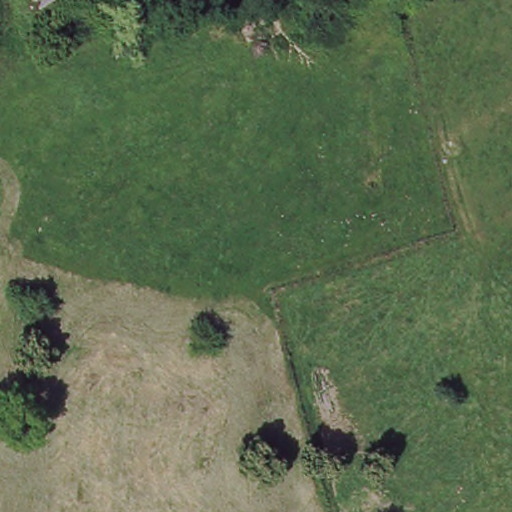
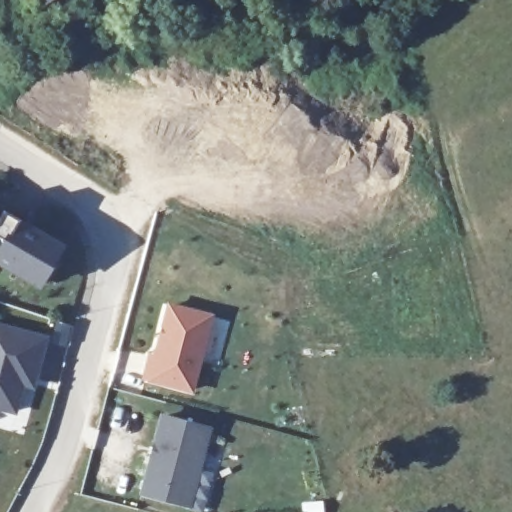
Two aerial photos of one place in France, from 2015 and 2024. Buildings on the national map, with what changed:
unchanged [(37,10),(31,0),(52,0),(37,10)]
new [(13,230),(56,255),(34,292),(0,272),(0,219),(15,228),(13,230)]
new [(214,313),(194,393),(141,379),(147,353),(152,354),(167,302),(214,313)]
new [(25,385),(16,416),(0,411),(0,323),(48,336),(34,387),(25,385)]
new [(160,413),(212,426),(189,507),(139,493),(160,413)]

